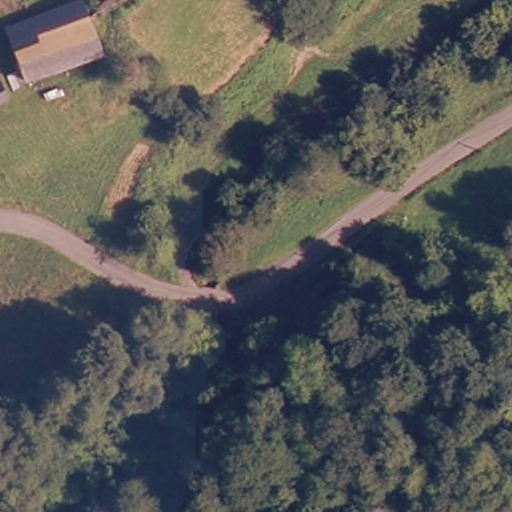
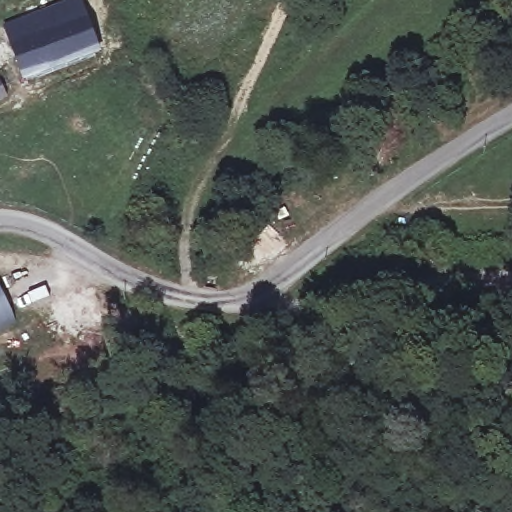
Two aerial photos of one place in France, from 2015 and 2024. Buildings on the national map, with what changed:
unchanged [(21,72),(12,36),(35,29),(30,8),(58,0),(82,0),(83,2),(96,51),(21,72)]
new [(0,329),(0,286),(16,321),(0,329)]
unchanged [(292,512),(290,512),(292,511),(292,512)]

